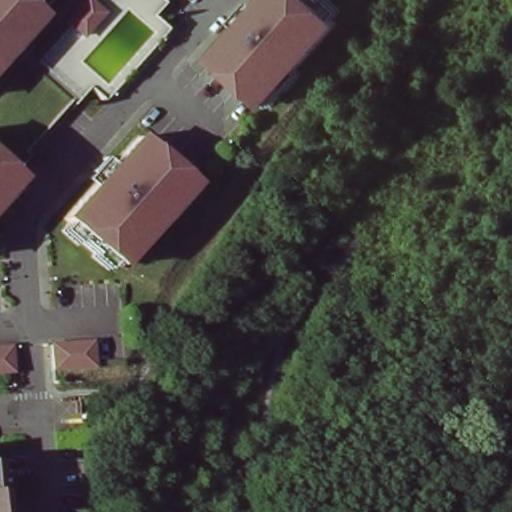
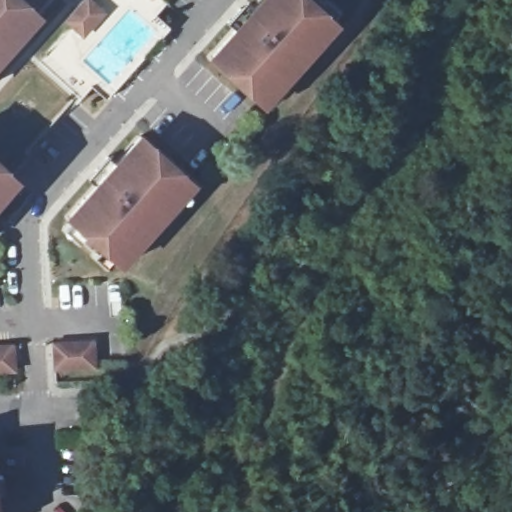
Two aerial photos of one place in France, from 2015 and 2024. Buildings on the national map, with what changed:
unchanged [(23,0),(37,12),(7,44),(12,48),(0,61),(0,0),(23,0)]
unchanged [(246,9),(254,16),(269,0),(315,0),(343,24),(299,73),(295,69),(265,102),(217,58),(242,30),(234,23),(246,9)]
unchanged [(101,176),(114,162),(122,169),(147,141),(195,185),(166,218),(170,222),(126,270),(73,223),(109,183),(101,176)]
unchanged [(0,196),(0,168),(14,181),(0,196)]
unchanged [(94,340),(95,365),(77,366),(57,367),(55,343),(94,340)]
unchanged [(14,350),(16,375),(0,376),(0,351),(14,350)]

